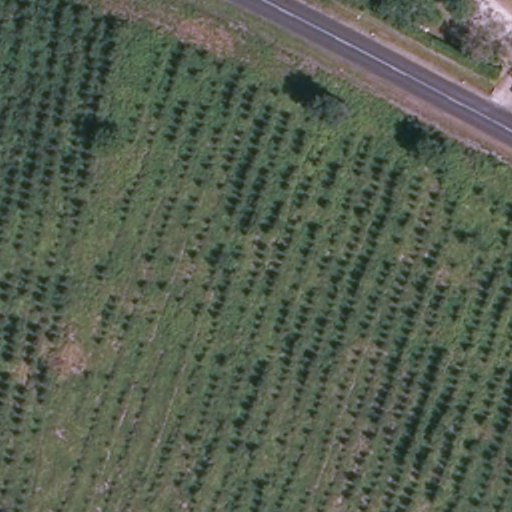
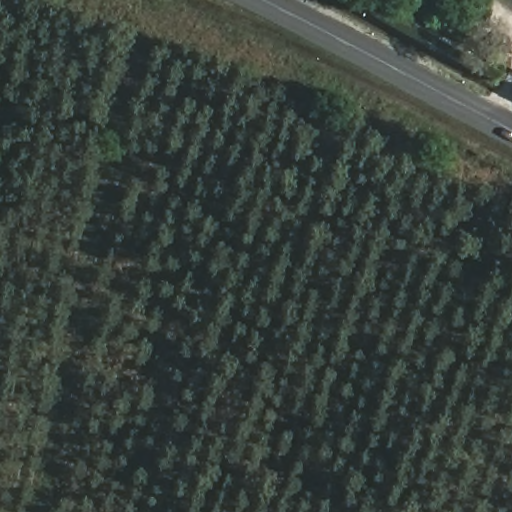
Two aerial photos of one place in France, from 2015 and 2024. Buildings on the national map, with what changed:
[]

